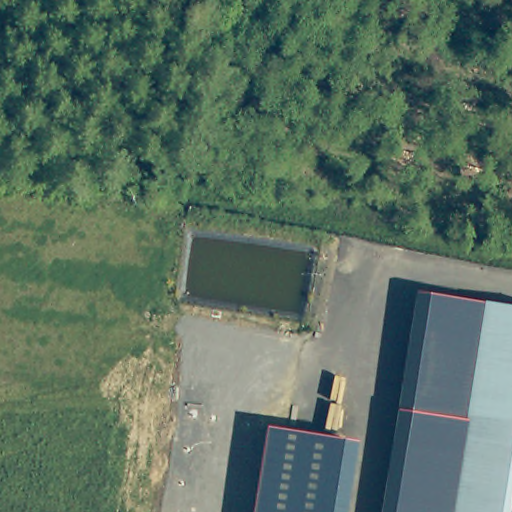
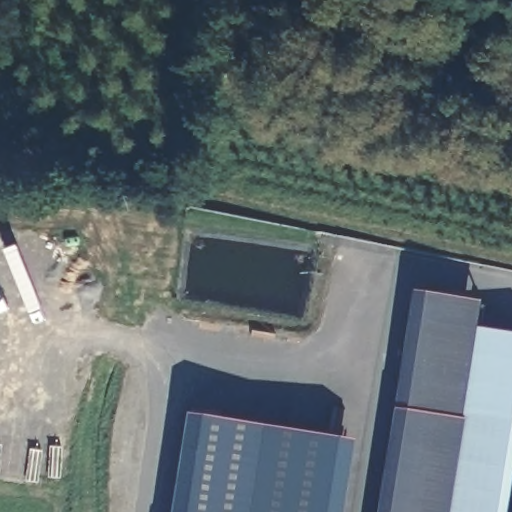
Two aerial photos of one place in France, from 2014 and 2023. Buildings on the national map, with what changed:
unchanged [(479,301),(446,512),(390,512),(424,293),(479,301)]
unchanged [(512,306),(512,462),(504,512),(446,512),(479,301),(512,306)]
new [(175,512),(191,413),(268,426),(254,512),(175,512)]
unchanged [(254,512),(268,426),(359,441),(348,512),(254,512)]

